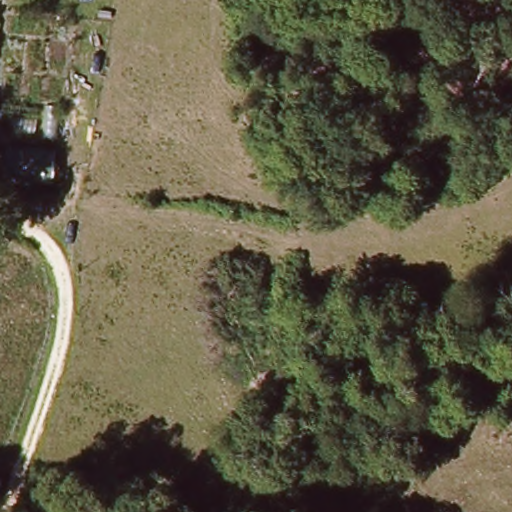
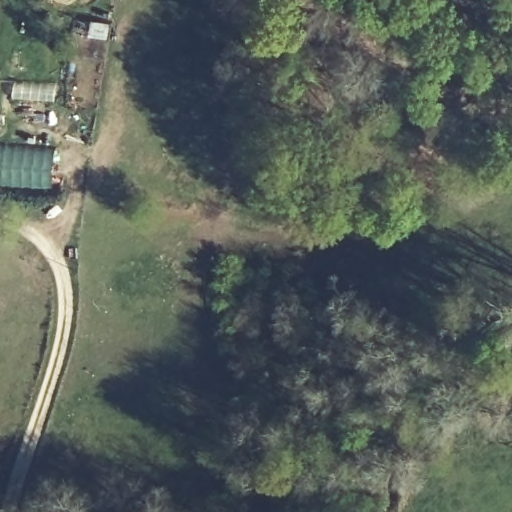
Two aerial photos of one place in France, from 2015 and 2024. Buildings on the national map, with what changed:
new [(52,187),(0,183),(0,142),(55,147),(52,187)]

